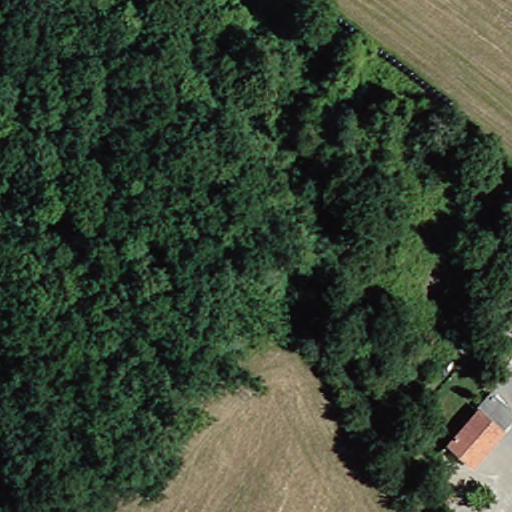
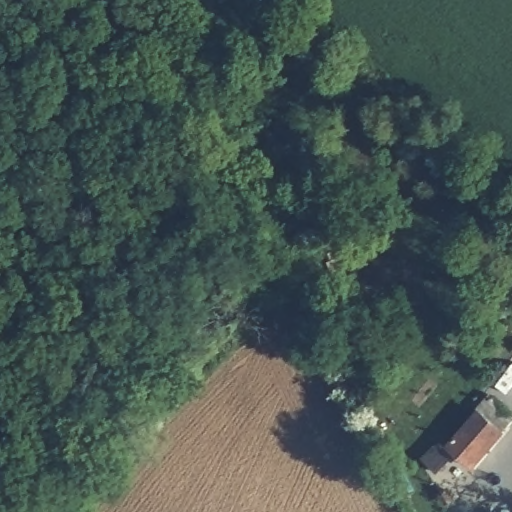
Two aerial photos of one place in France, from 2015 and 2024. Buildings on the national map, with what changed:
unchanged [(509,432),(478,467),(472,462),(457,448),(488,409),(497,419),(509,432)]

